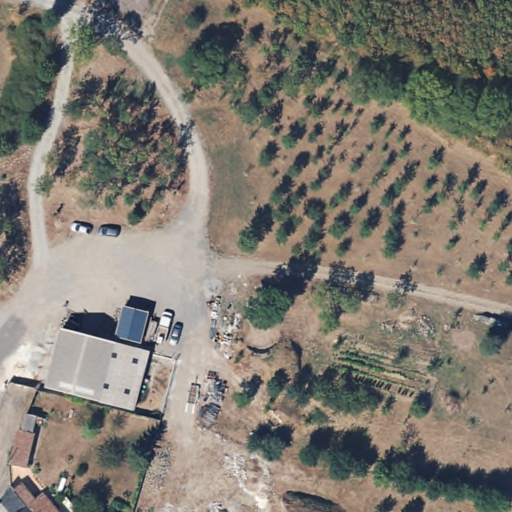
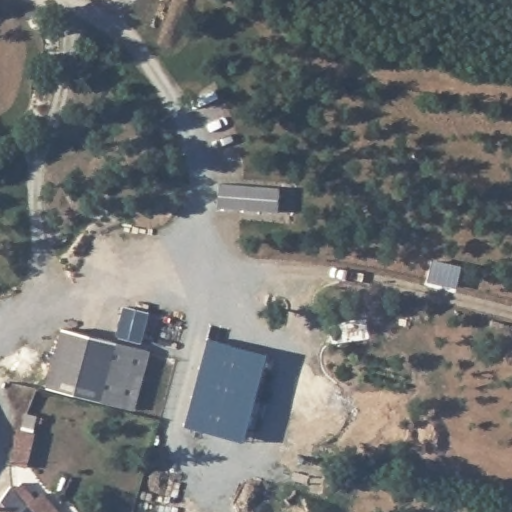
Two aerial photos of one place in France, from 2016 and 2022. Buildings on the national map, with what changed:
new [(218,184),(278,187),(276,211),(216,207),(218,184)]
unchanged [(41,388),(60,325),(117,341),(100,404),(41,388)]
new [(117,341),(151,350),(134,413),(100,404),(117,341)]
new [(184,425),(205,341),(265,354),(243,442),(184,425)]
unchanged [(13,491),(20,485),(34,500),(41,493),(56,512),(0,512),(0,497),(6,488),(13,491)]

